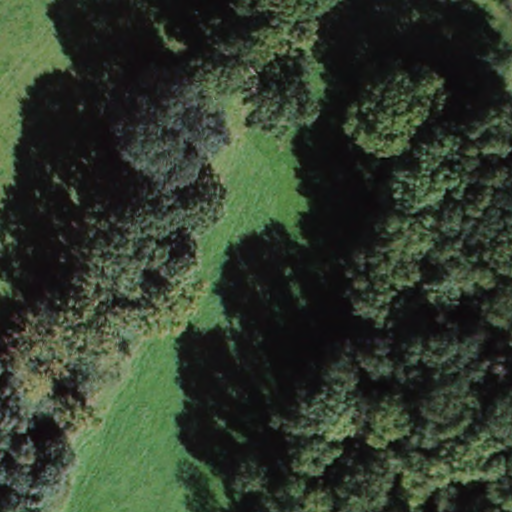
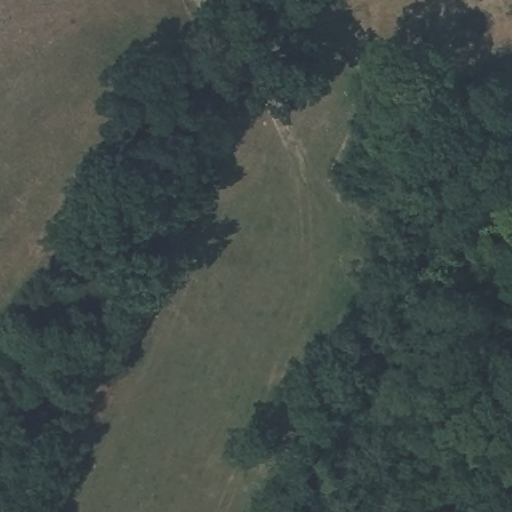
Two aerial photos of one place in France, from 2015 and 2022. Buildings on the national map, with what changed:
unchanged [(396,163),(370,218),(347,207),(375,151),(396,163)]

